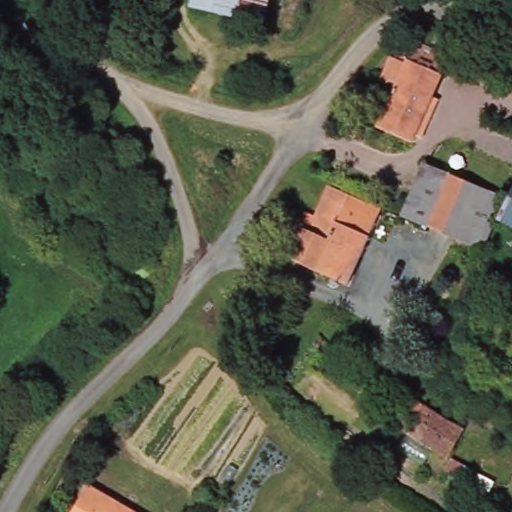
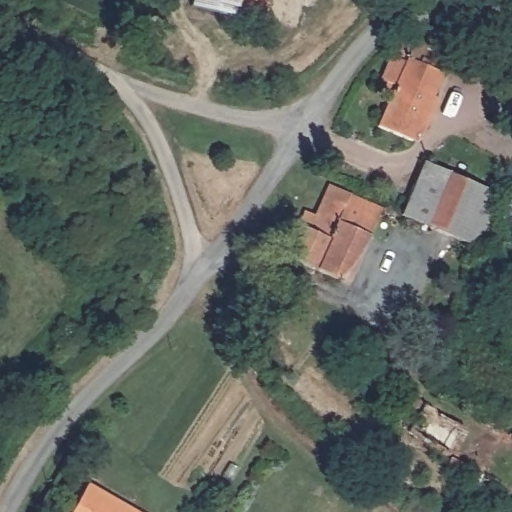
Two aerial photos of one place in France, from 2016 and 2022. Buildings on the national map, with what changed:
unchanged [(262,20),(194,0),(269,0),(262,20)]
unchanged [(422,132),(414,129),(411,136),(378,123),(392,87),(386,84),(388,76),(381,72),(390,52),(396,53),(403,34),(420,41),(447,51),(430,92),(437,95),(422,132)]
unchanged [(406,212),(427,155),(435,157),(442,142),(472,154),(482,135),(512,148),(512,189),(510,194),(504,192),(452,172),(431,224),(406,212)]
unchanged [(452,172),(504,192),(497,211),(484,244),(431,224),(452,172)]
unchanged [(297,222),(306,226),(311,215),(322,192),(327,180),(337,184),(343,187),(381,204),(348,280),(312,265),(284,252),(297,222)]
unchanged [(505,214),(497,211),(504,192),(510,194),(512,189),(512,218),(505,214)]
unchanged [(443,448),(406,425),(412,413),(421,396),(470,427),(453,454),(443,448)]
unchanged [(148,512),(70,512),(91,478),(148,512)]

